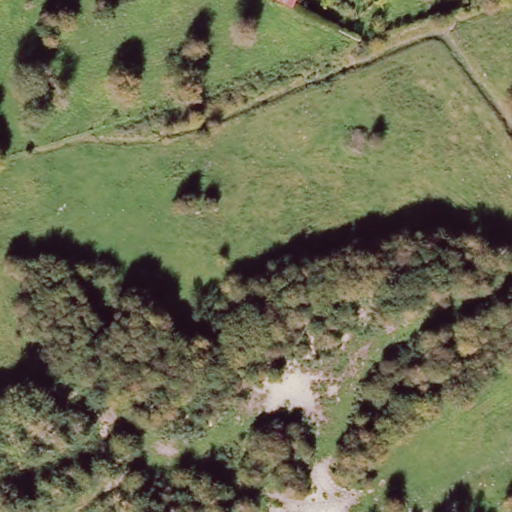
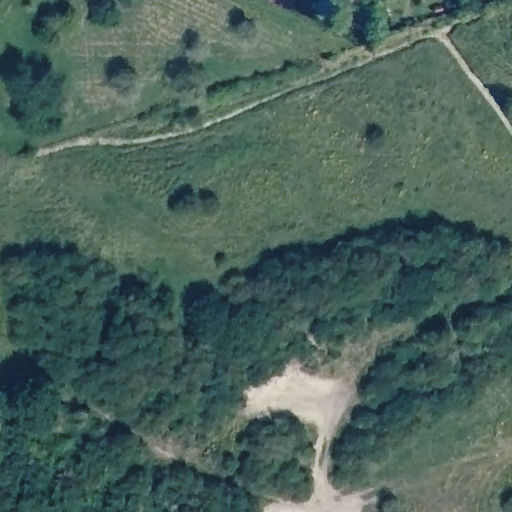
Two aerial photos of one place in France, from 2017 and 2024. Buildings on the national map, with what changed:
unchanged [(276,0),(294,0),(290,7),(276,0)]

